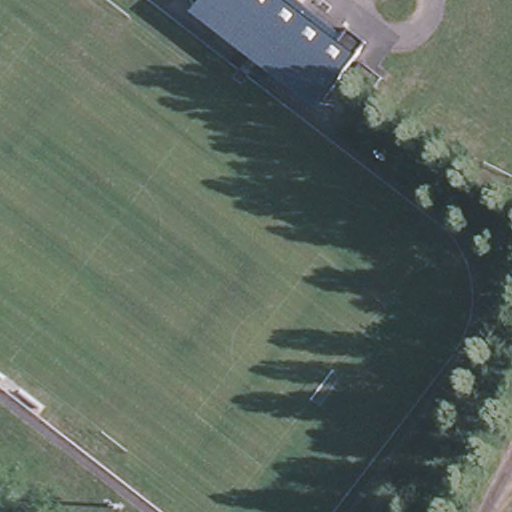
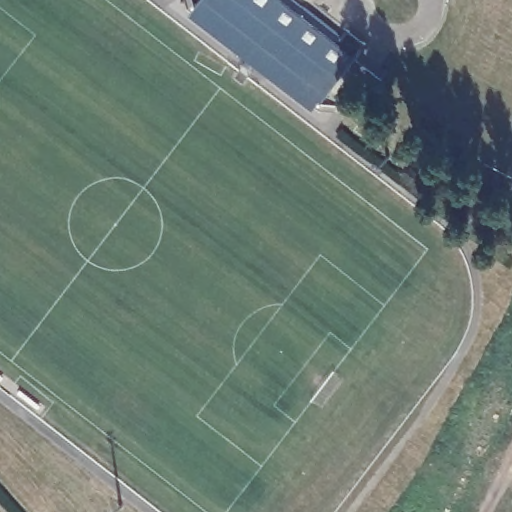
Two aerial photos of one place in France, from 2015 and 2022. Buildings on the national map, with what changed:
unchanged [(200,0),(289,0),(360,54),(321,112),(190,12),(200,0)]

